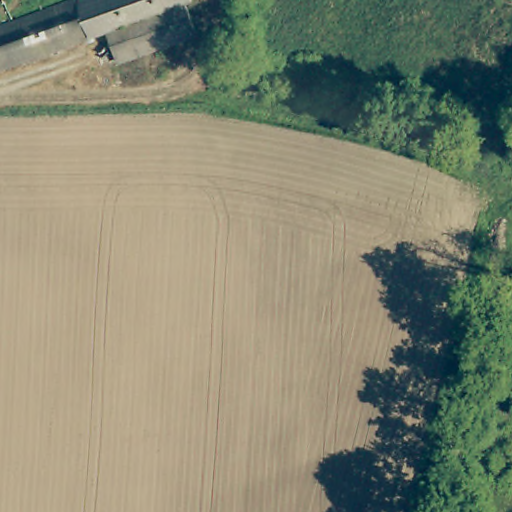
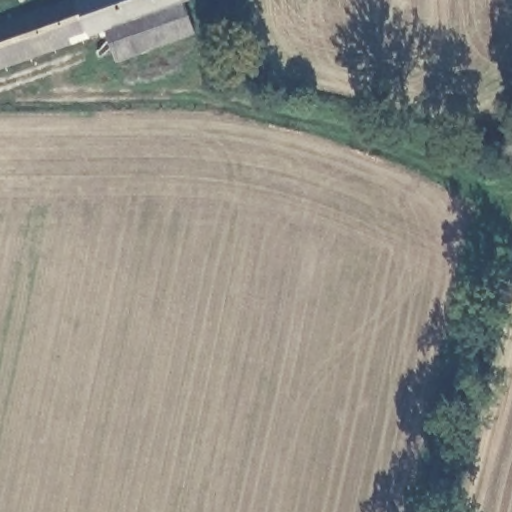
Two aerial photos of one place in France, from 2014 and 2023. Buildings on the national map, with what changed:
unchanged [(195,0),(196,8),(188,10),(195,43),(113,61),(107,33),(0,56),(0,10),(53,0),(195,0)]

